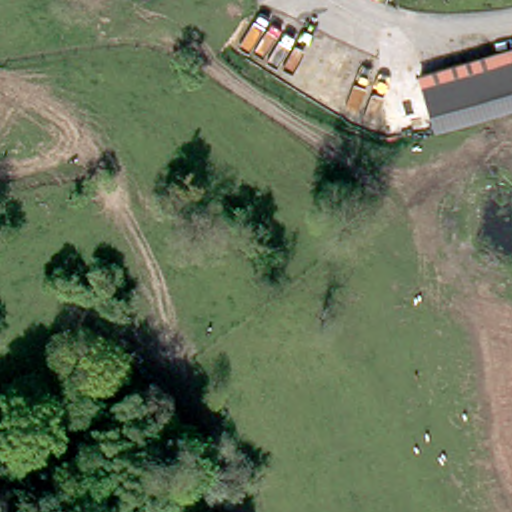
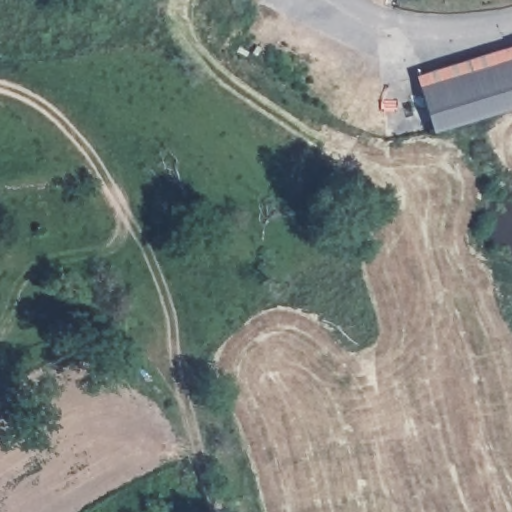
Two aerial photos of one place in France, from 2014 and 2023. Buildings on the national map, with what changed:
unchanged [(406,70),(512,40),(512,107),(429,131),(406,70)]

